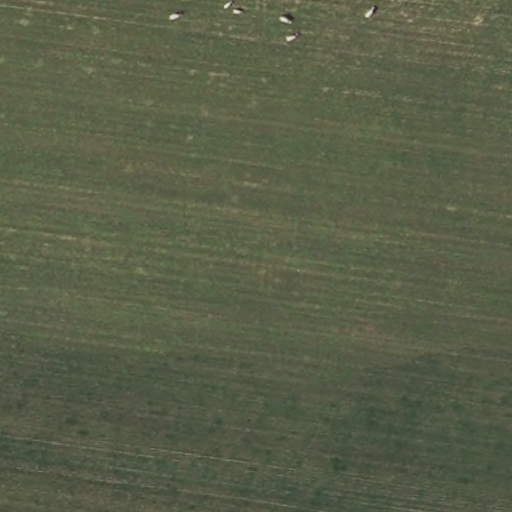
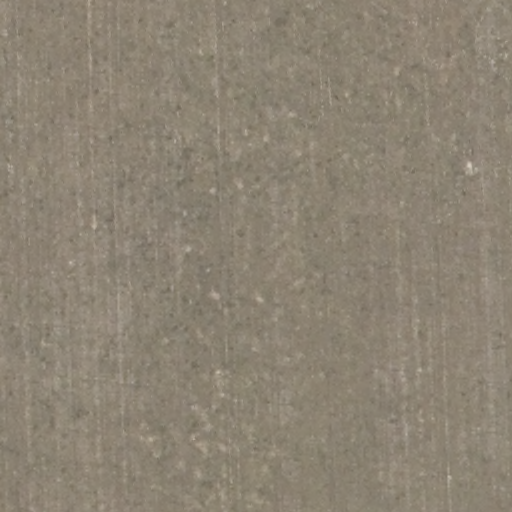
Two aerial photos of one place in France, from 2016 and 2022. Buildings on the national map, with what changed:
[]

